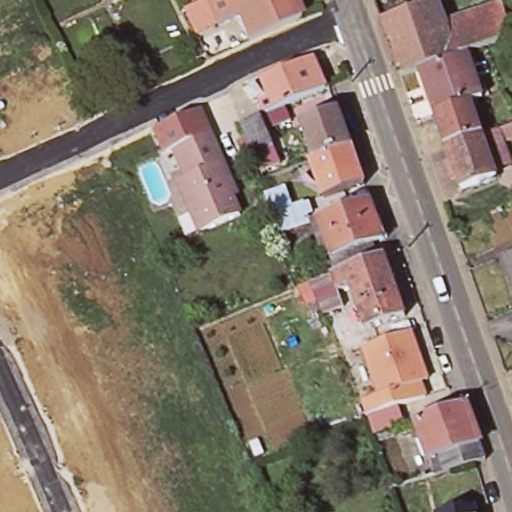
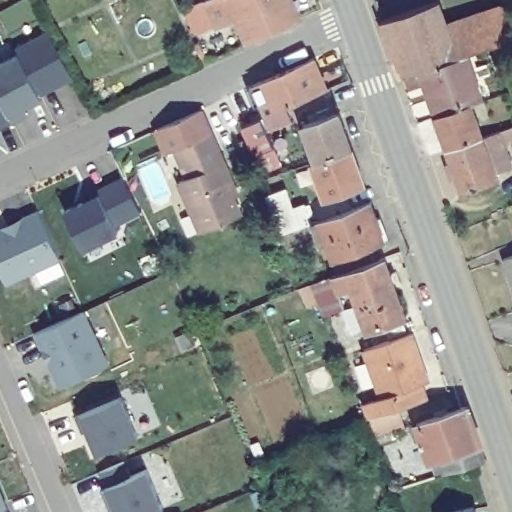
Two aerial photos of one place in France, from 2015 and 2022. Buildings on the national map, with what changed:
unchanged [(193,0),(293,0),(299,14),(246,38),(237,14),(217,22),(216,20),(195,30),(183,5),(193,0)]
unchanged [(380,20),(435,0),(438,0),(446,22),(457,55),(418,67),(400,74),(380,20)]
unchanged [(465,51),(457,55),(446,22),(502,3),(512,33),(512,35),(485,45),(465,51)]
new [(41,97),(17,51),(50,34),(74,80),(62,86),(56,90),(41,97)]
new [(25,105),(29,115),(13,125),(0,100),(0,60),(17,51),(41,97),(25,105)]
unchanged [(457,55),(465,51),(482,97),(470,101),(435,114),(418,67),(457,55)]
unchanged [(330,88),(264,115),(259,101),(268,95),(262,80),(317,57),(330,88)]
new [(0,131),(0,100),(13,125),(0,131)]
unchanged [(493,168),(496,176),(461,188),(447,146),(435,114),(470,101),(482,133),(512,122),(512,135),(502,139),(510,161),(493,168)]
unchanged [(171,147),(162,151),(152,130),(202,107),(211,130),(171,147)]
unchanged [(349,146),(314,159),(302,124),(337,111),(349,146)]
unchanged [(260,119),(278,161),(260,169),(240,128),(260,119)]
unchanged [(244,209),(193,230),(174,184),(184,179),(171,147),(211,130),(244,209)]
unchanged [(365,184),(322,200),(308,161),(314,159),(349,146),(365,184)]
new [(83,200),(97,194),(124,180),(141,215),(115,228),(118,235),(83,251),(65,214),(85,204),(83,200)]
unchanged [(323,235),(287,250),(281,233),(278,234),(265,196),(285,189),(292,206),(303,203),(310,222),(317,220),(368,200),(382,240),(371,243),(377,259),(384,256),(405,316),(365,330),(350,285),(338,290),(333,275),(337,273),(332,257),(323,235)]
new [(39,214),(60,262),(7,286),(0,271),(0,232),(2,231),(25,220),(39,214)]
unchanged [(512,256),(512,282),(504,258),(512,256)]
unchanged [(338,290),(347,310),(323,319),(322,310),(310,315),(299,286),(333,275),(338,290)]
new [(84,314),(108,367),(60,390),(50,366),(53,365),(46,348),(42,350),(35,335),(84,314)]
unchanged [(377,435),(370,417),(366,418),(361,403),(380,396),(362,348),(370,345),(410,331),(418,357),(427,379),(420,381),(425,397),(397,407),(404,425),(393,430),(395,436),(378,442),(377,435)]
new [(122,399),(138,438),(97,455),(92,445),(95,443),(90,432),(83,435),(76,418),(122,399)]
unchanged [(475,464),(447,473),(440,455),(430,459),(423,438),(417,441),(414,432),(420,430),(417,421),(455,408),(465,405),(478,442),(485,461),(475,464)]
new [(148,468),(164,507),(152,512),(112,512),(101,488),(105,486),(98,470),(124,460),(135,472),(148,468)]
new [(0,512),(0,486),(11,512),(0,512)]
unchanged [(472,502),(474,512),(438,512),(438,510),(472,502)]

